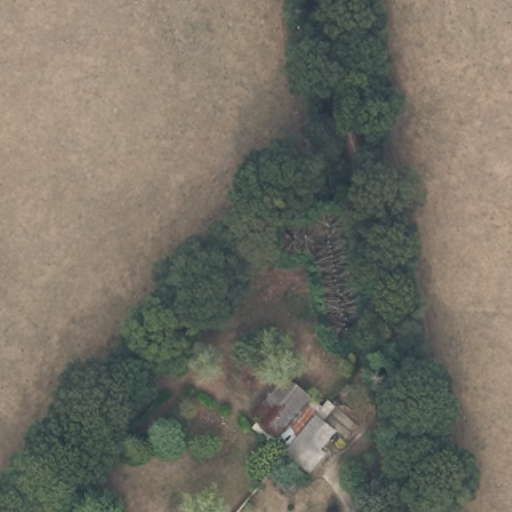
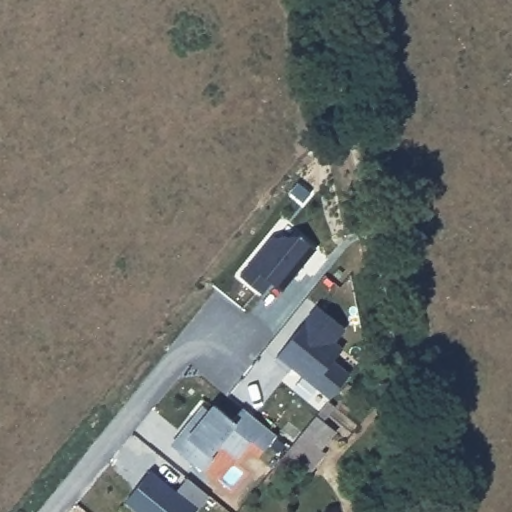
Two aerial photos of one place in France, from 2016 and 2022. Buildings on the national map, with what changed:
new [(270,237),(278,237),(285,230),(299,233),(318,248),(282,291),(272,282),(262,293),(239,275),(270,237)]
new [(274,360),(317,305),(346,328),(335,342),(343,348),(334,359),(351,372),(330,398),(292,368),(288,372),(274,360)]
demolished [(281,380),(304,398),(273,437),(250,419),(281,380)]
unchanged [(340,412),(313,447),(317,451),(300,471),(278,456),(282,451),(323,399),(340,412)]
new [(264,450),(252,440),(237,459),(218,445),(211,454),(214,457),(205,470),(188,458),(171,443),(201,404),(208,409),(213,404),(233,419),(243,407),(277,433),(264,450)]
new [(195,512),(138,512),(125,502),(151,469),(177,492),(188,478),(209,495),(197,510),(195,512)]

